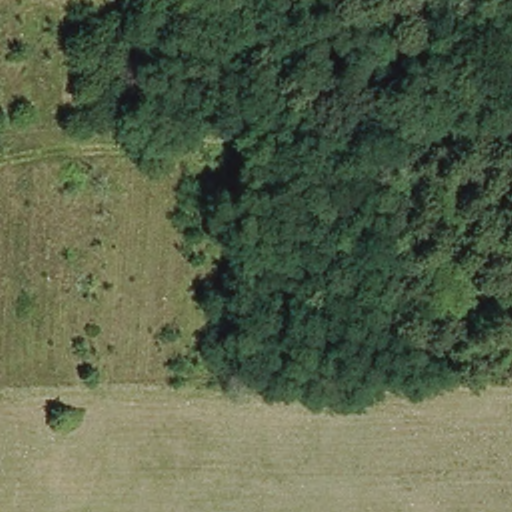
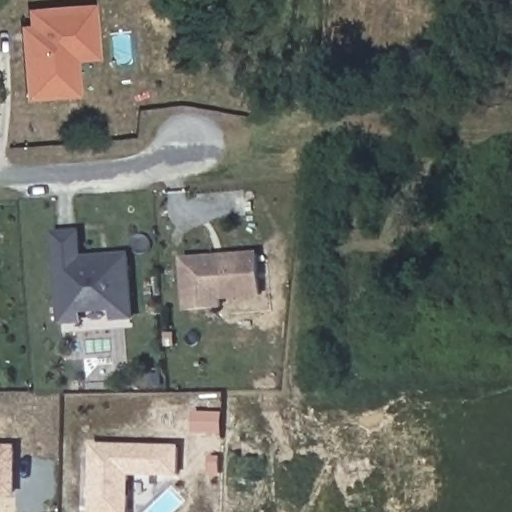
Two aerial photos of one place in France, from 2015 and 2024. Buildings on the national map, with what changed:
new [(78,97),(23,101),(17,28),(28,27),(27,10),(93,4),(97,60),(76,61),(78,97)]
new [(112,313),(80,314),(80,324),(59,326),(54,232),(82,231),(83,257),(132,254),(137,321),(114,323),(112,313)]
new [(222,300),(223,310),(186,313),(182,258),(260,252),(264,299),(222,300)]
new [(179,448),(178,478),(130,477),(128,512),(88,512),(89,445),(179,448)]
new [(17,446),(16,496),(0,495),(0,446),(17,446)]

